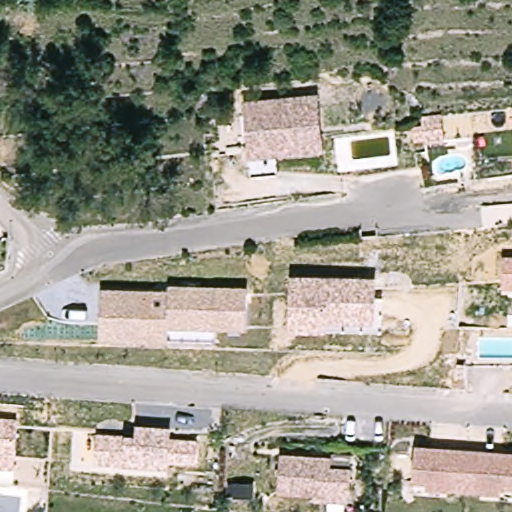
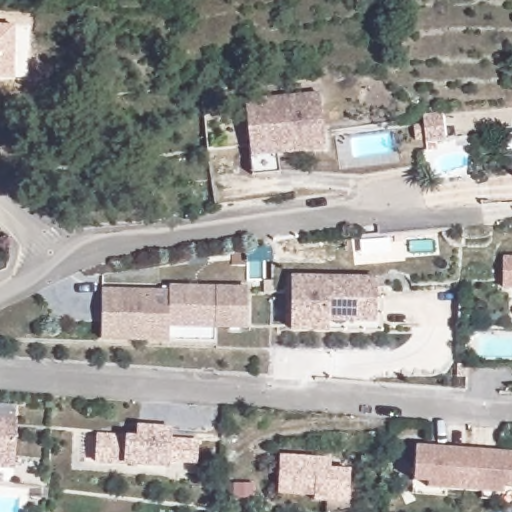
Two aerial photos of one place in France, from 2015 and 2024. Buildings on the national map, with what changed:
new [(0,77),(0,24),(16,25),(14,78),(0,77)]
unchanged [(254,176),(251,155),(245,99),(321,90),(327,147),(279,152),(281,172),(254,176)]
unchanged [(415,143),(413,126),(423,126),(422,115),(442,112),(445,140),(415,143)]
unchanged [(512,290),(502,290),(502,258),(512,258),(512,290)]
unchanged [(375,323),(326,323),(326,333),(289,332),(290,275),(377,277),(375,323)]
new [(272,293),(265,293),(265,280),(273,281),(272,293)]
unchanged [(247,331),(170,328),(170,345),(100,342),(103,289),(168,290),(169,284),(249,287),(247,331)]
unchanged [(14,467),(0,466),(0,417),(18,419),(14,467)]
unchanged [(136,436),(137,424),(173,427),(172,438),(200,442),(198,466),(170,463),(170,471),(94,464),(97,433),(136,436)]
unchanged [(428,494),(411,493),(412,485),(415,451),(512,458),(512,500),(502,499),(428,494)]
unchanged [(331,470),(350,471),(349,504),(313,502),(314,497),(278,495),(280,456),(331,460),(331,470)]

